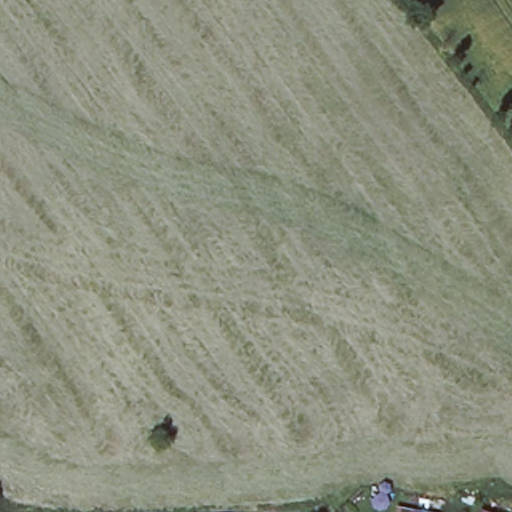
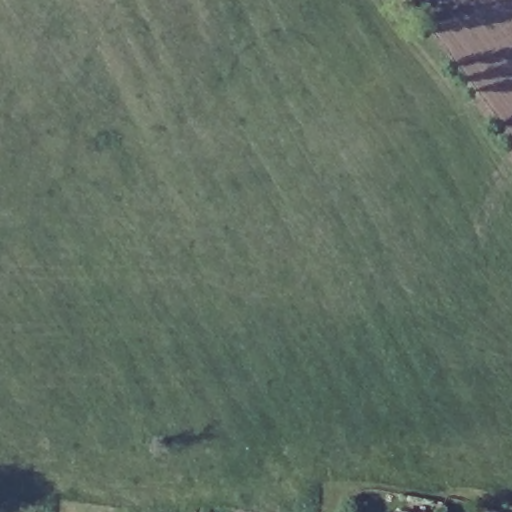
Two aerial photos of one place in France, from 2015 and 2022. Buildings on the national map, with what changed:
unchanged [(416,512),(402,512),(403,508),(416,512)]

